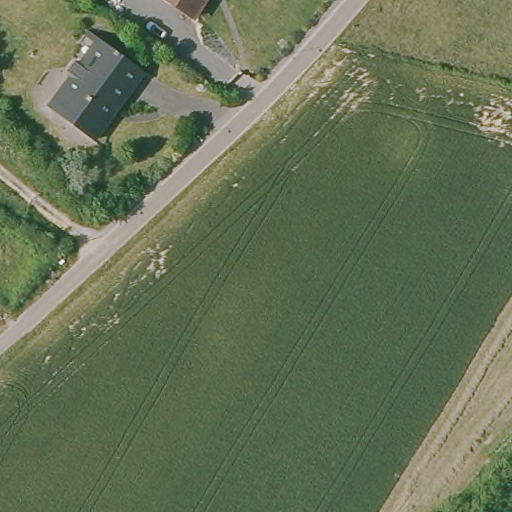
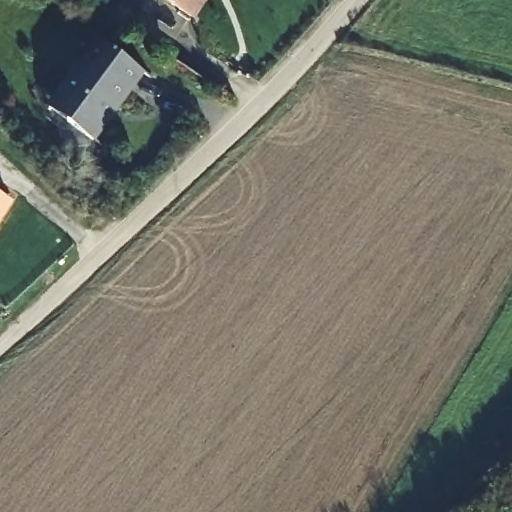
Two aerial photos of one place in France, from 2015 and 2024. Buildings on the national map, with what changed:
unchanged [(190,0),(180,15),(157,0),(190,0)]
unchanged [(49,100),(67,78),(65,70),(75,59),(81,59),(96,41),(83,32),(87,27),(100,37),(138,67),(119,91),(116,89),(97,112),(103,117),(88,137),(63,119),(45,105),(49,100)]
new [(13,202),(0,227),(0,195),(13,202)]

